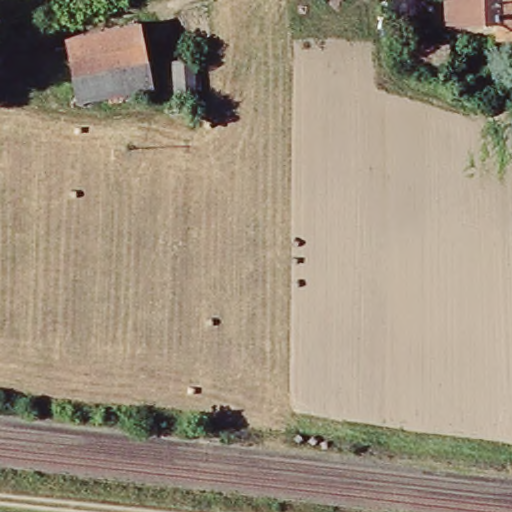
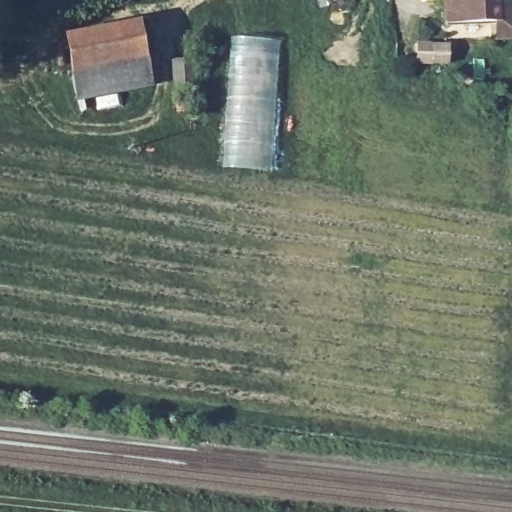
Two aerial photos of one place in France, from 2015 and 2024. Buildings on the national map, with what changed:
unchanged [(494,20),(444,20),(444,0),(512,0),(512,33),(495,34),(494,20)]
unchanged [(70,76),(61,43),(135,26),(142,60),(70,76)]
new [(220,127),(228,35),(282,38),(278,82),(279,122),(276,172),(218,169),(220,127)]
unchanged [(445,44),(446,66),(417,68),(416,45),(445,44)]
unchanged [(70,76),(142,60),(149,88),(74,102),(70,76)]
unchanged [(179,99),(176,66),(194,64),(197,97),(179,99)]

